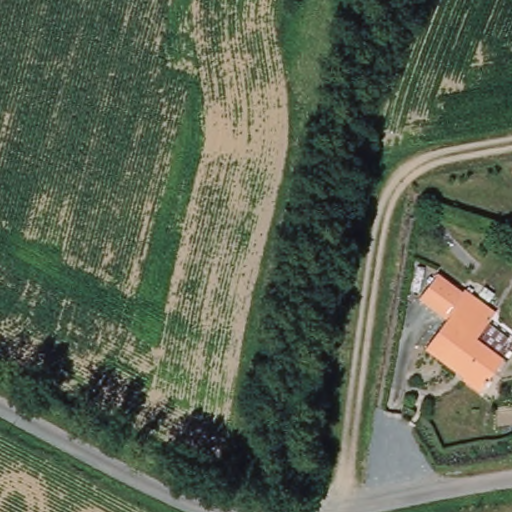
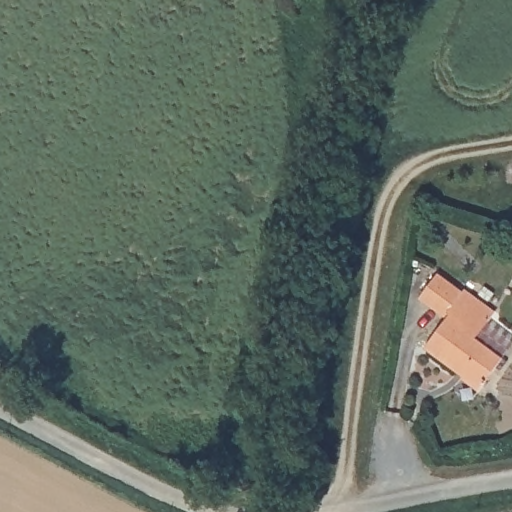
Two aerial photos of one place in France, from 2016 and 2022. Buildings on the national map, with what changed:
unchanged [(453,320),(425,301),(442,276),(468,291),(500,313),(482,340),(509,357),(486,391),(468,379),(471,376),(433,351),(453,320)]

